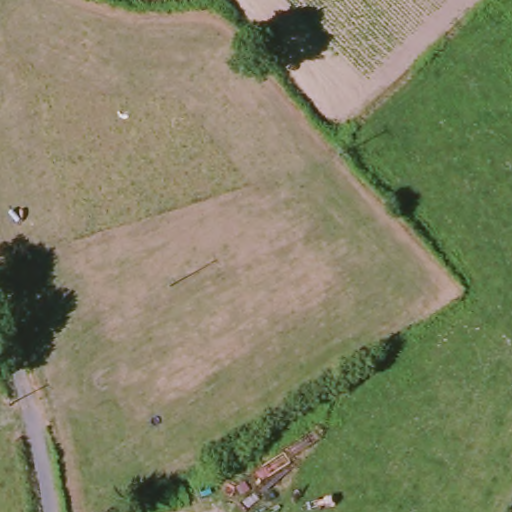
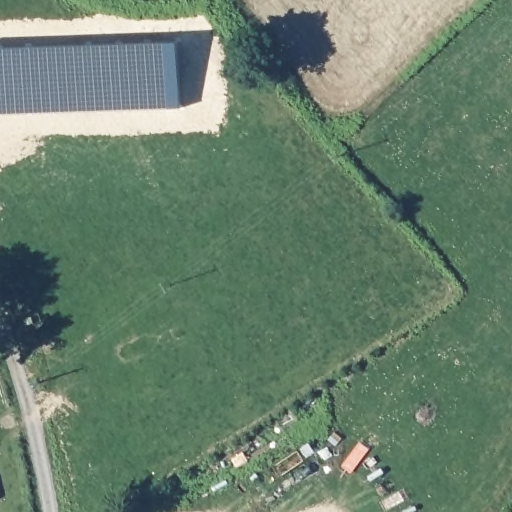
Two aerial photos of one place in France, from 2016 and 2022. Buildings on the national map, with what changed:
new [(171,108),(0,115),(0,51),(169,44),(171,108)]

